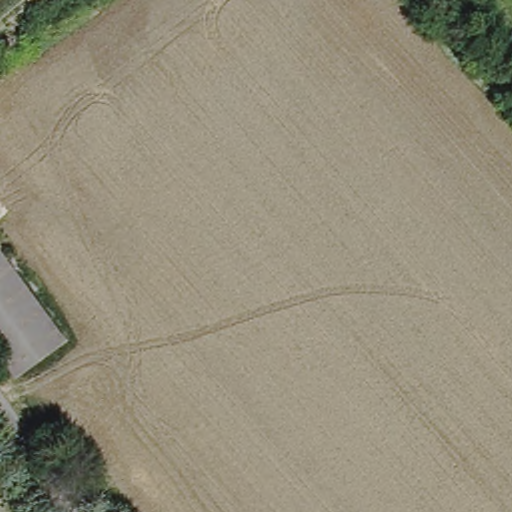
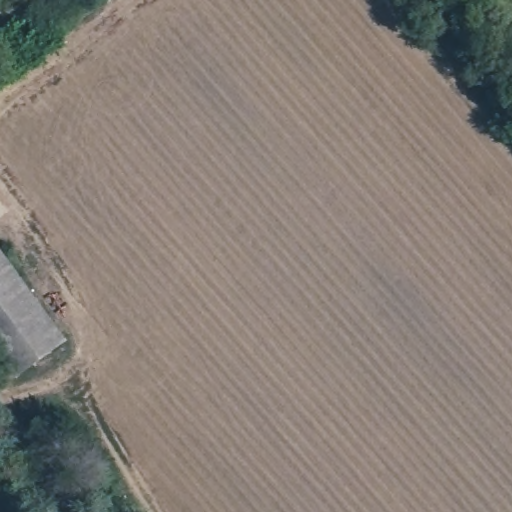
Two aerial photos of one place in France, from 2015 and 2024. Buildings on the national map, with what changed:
unchanged [(0,250),(69,333),(25,368),(0,338),(0,250)]

